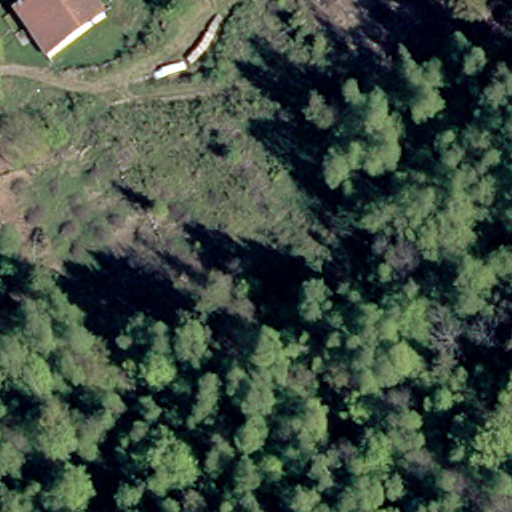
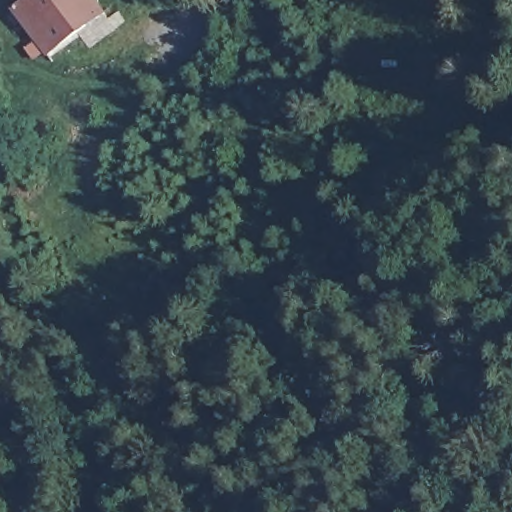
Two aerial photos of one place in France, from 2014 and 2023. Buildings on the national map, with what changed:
unchanged [(89,0),(98,13),(43,50),(27,24),(15,5),(22,0),(89,0)]

